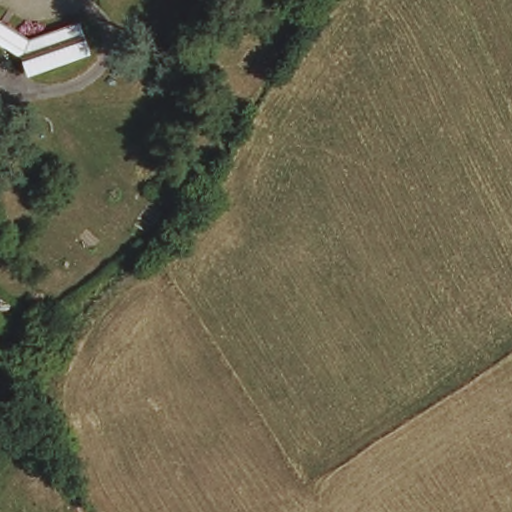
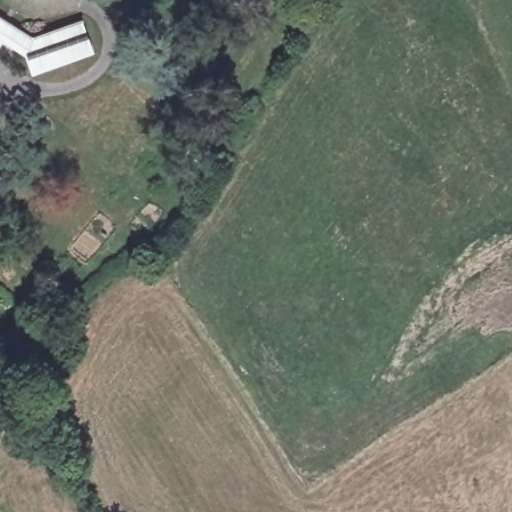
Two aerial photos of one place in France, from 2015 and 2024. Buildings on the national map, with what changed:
unchanged [(85,23),(95,54),(41,69),(4,42),(0,49),(0,15),(33,37),(85,23)]

